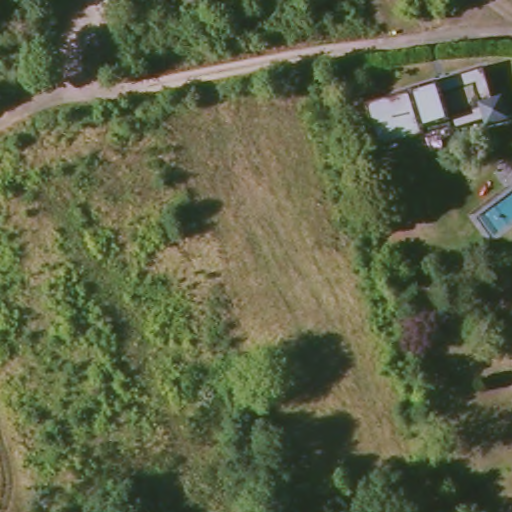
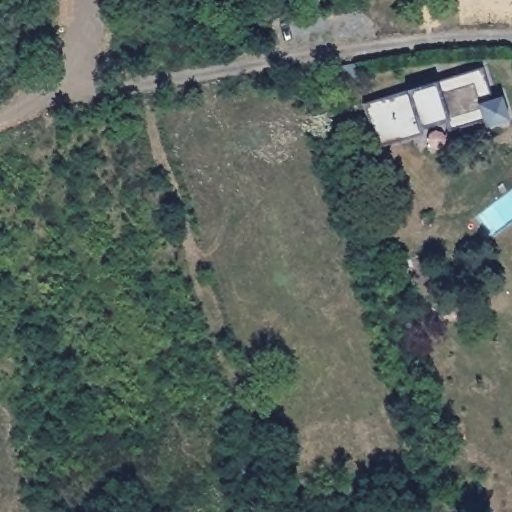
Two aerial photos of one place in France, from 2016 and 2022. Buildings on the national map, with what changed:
unchanged [(490,106),(474,111),(462,69),(486,62),(497,91),(508,88),(512,99),(512,107),(492,112),(490,106)]
unchanged [(429,126),(428,121),(381,134),(369,95),(441,72),(442,75),(462,69),(474,111),(429,126)]

